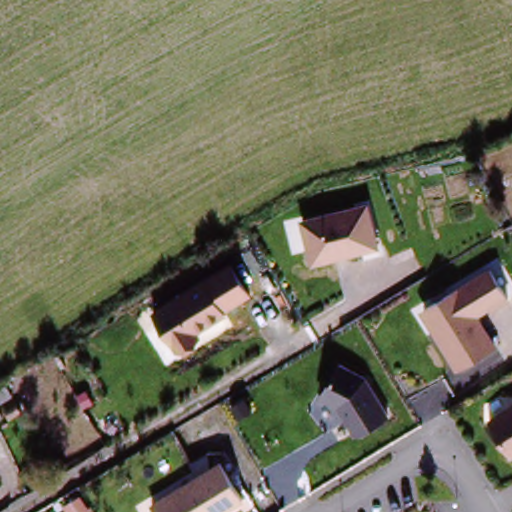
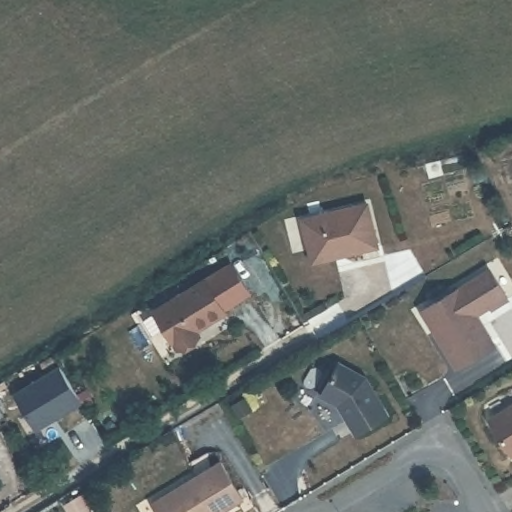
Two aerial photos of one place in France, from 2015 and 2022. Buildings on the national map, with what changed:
unchanged [(301,219),(370,204),(378,251),(312,266),(301,219)]
new [(204,280),(231,262),(251,293),(223,311),(204,280)]
unchanged [(431,308),(489,267),(505,291),(478,306),(495,337),(462,355),(431,308)]
unchanged [(226,315),(198,334),(196,346),(187,351),(176,350),(153,312),(204,280),(226,315)]
unchanged [(375,375),(395,408),(362,433),(344,405),(330,392),(346,360),(375,375)]
new [(83,403),(35,431),(13,393),(59,365),(83,403)]
unchanged [(494,417),(512,406),(512,447),(494,417)]
unchanged [(0,414),(0,412),(1,413),(0,414)]
unchanged [(219,455),(254,498),(232,512),(163,512),(154,497),(219,455)]

